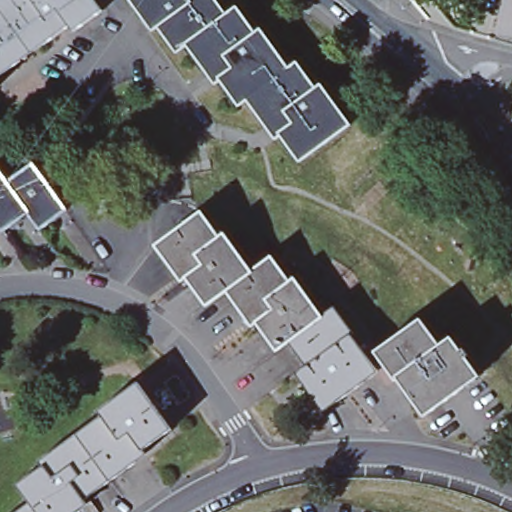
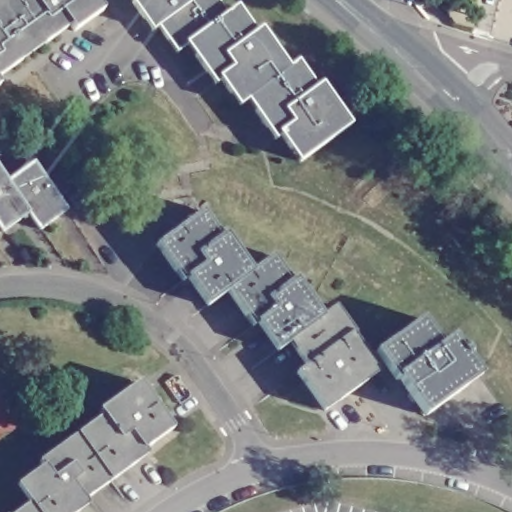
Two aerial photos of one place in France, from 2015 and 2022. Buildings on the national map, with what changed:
unchanged [(98,5),(73,24),(68,19),(32,45),(0,1),(0,0),(94,0),(98,5)]
unchanged [(224,12),(184,44),(175,51),(156,25),(151,29),(130,0),(214,0),(224,12)]
unchanged [(32,45),(0,68),(0,1),(32,45)]
unchanged [(236,3),(255,29),(259,26),(288,66),(246,97),(239,103),(220,77),(213,82),(184,44),(224,12),(236,3)]
unchanged [(288,66),(296,60),(313,86),(319,82),(350,123),(299,159),(279,132),(274,136),(246,97),(288,66)]
unchanged [(32,162),(48,182),(66,207),(39,227),(27,210),(6,180),(32,162)]
unchanged [(6,180),(27,210),(1,230),(0,229),(0,172),(6,180)]
unchanged [(202,210),(220,235),(225,231),(253,270),(227,288),(228,289),(207,304),(180,266),(175,270),(155,242),(202,210)]
unchanged [(227,288),(253,270),(274,255),(292,280),(297,277),(324,313),(290,338),(290,340),(278,348),(251,312),(246,315),(228,289),(227,288)]
unchanged [(290,338),(324,313),(336,305),(355,330),(352,332),(378,370),(324,408),(297,371),(308,363),(290,340),(290,338)]
unchanged [(417,316),(436,343),(447,335),(456,348),(460,345),(465,352),(461,356),(474,375),(421,412),(395,373),(391,377),(372,348),(417,316)]
unchanged [(99,412),(95,407),(134,381),(168,426),(130,452),(133,457),(107,476),(73,431),(99,412)]
unchanged [(39,462),(35,457),(73,431),(107,476),(69,502),(73,507),(66,512),(37,512),(26,497),(13,480),(39,462)]
unchanged [(37,512),(5,512),(26,497),(37,512)]

